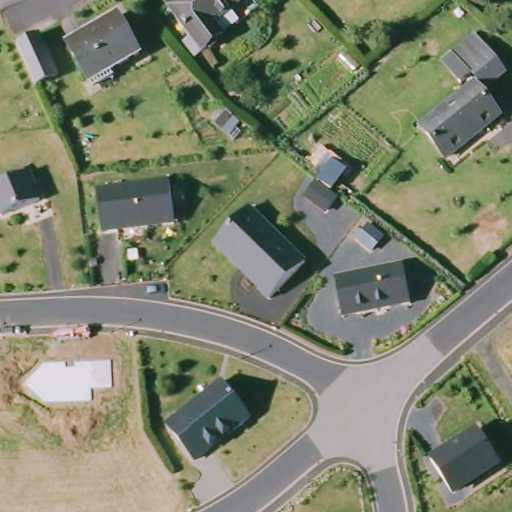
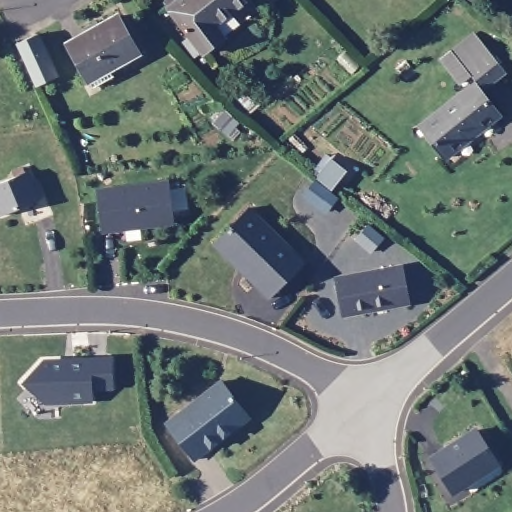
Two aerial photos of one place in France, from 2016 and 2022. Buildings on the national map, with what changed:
unchanged [(239,0),(253,15),(203,58),(166,17),(186,0),(239,0)]
unchanged [(74,35),(71,28),(83,22),(87,29),(115,15),(133,49),(105,64),(110,73),(79,88),(55,45),(74,35)]
unchanged [(500,71),(480,86),(469,73),(457,82),(439,59),(472,34),(500,71)]
unchanged [(6,48),(28,38),(45,80),(23,89),(6,48)]
unchanged [(470,84),(495,116),(443,157),(417,125),(470,84)]
unchanged [(317,181),(335,161),(347,171),(330,191),(317,181)]
unchanged [(0,210),(0,183),(30,172),(40,201),(2,216),(0,210)]
unchanged [(94,191),(170,182),(173,224),(100,235),(94,191)]
unchanged [(220,237),(249,206),(305,260),(270,297),(255,284),(213,243),(220,237)]
unchanged [(335,275),(404,264),(410,302),(341,313),(335,275)]
new [(42,364),(110,362),(110,389),(90,389),(90,402),(45,404),(24,384),(42,364)]
unchanged [(196,458),(173,429),(167,422),(180,413),(222,379),(250,415),(234,429),(210,448),(196,458)]
unchanged [(425,457),(476,426),(498,465),(451,496),(425,457)]

